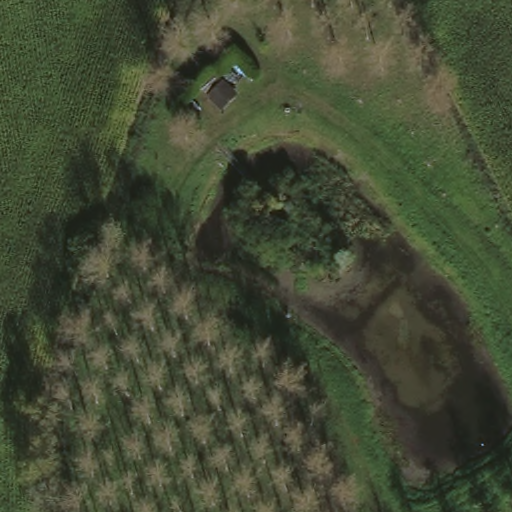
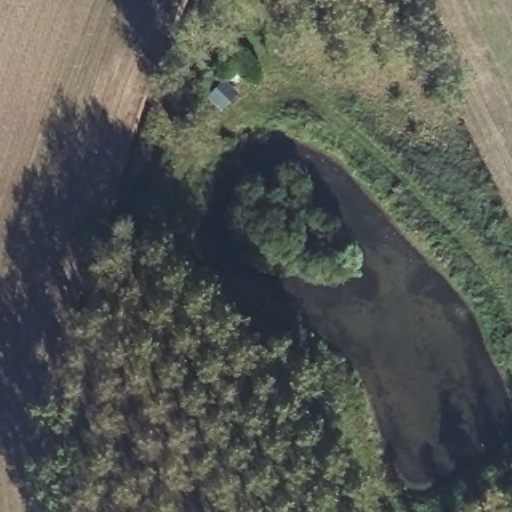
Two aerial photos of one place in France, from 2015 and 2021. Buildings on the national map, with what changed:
unchanged [(199,91),(212,77),(225,88),(212,102),(199,91)]

